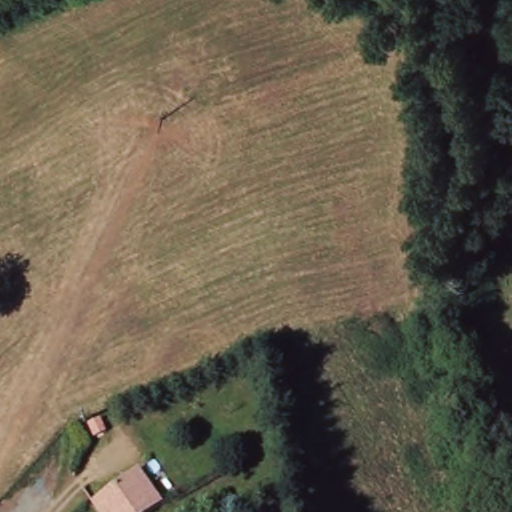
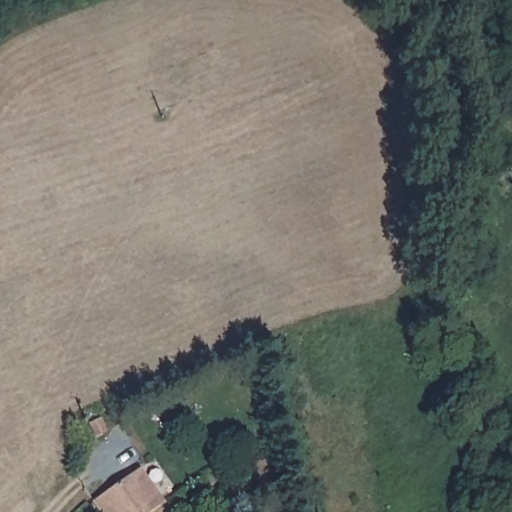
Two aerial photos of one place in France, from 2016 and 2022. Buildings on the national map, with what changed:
unchanged [(93,502),(114,487),(131,512),(99,512),(93,502)]

